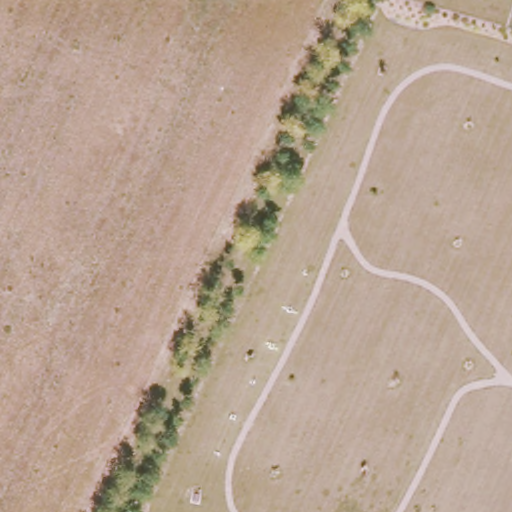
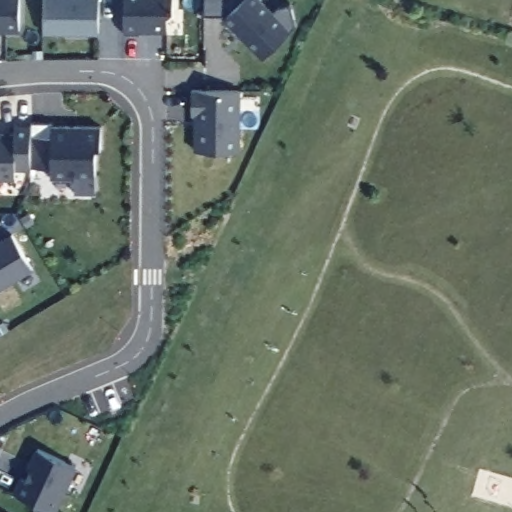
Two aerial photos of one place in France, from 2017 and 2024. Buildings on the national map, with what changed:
new [(167,19),(168,34),(140,34),(140,37),(124,37),(124,0),(173,0),(173,14),(167,19)]
new [(278,7),(290,4),(296,26),(264,57),(222,15),(204,14),(204,0),(260,0),(272,12),(278,7)]
new [(20,42),(0,42),(0,2),(20,2),(20,42)]
new [(99,7),(98,42),(44,42),(44,7),(99,7)]
new [(240,90),(240,151),(197,151),(198,107),(193,107),(193,90),(240,90)]
new [(53,124),(53,127),(100,127),(100,147),(95,148),(95,194),(75,194),(75,178),(51,178),(51,168),(31,168),(32,127),(31,123),(53,124)]
new [(16,168),(16,178),(0,178),(0,136),(15,136),(15,127),(32,127),(31,168),(16,168)]
new [(23,273),(0,288),(0,242),(3,240),(23,273)]
new [(22,478),(25,481),(31,470),(29,469),(38,449),(76,467),(55,512),(15,493),(22,478)]

